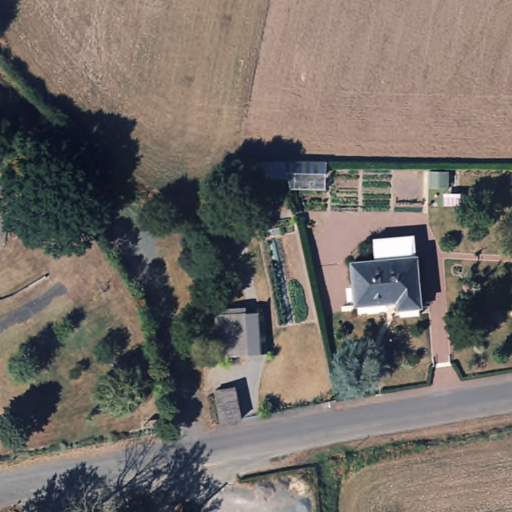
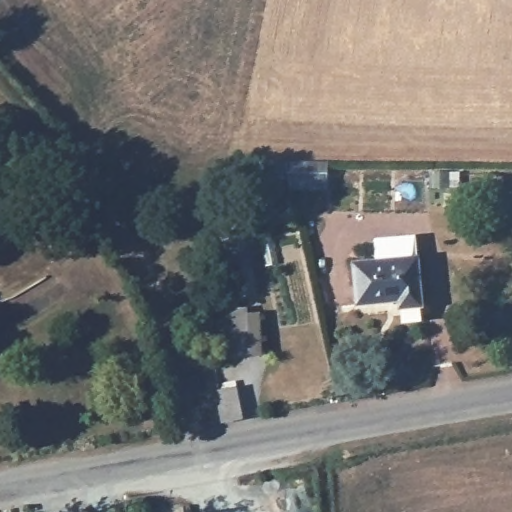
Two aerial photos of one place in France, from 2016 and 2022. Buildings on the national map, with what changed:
unchanged [(314,171),(313,196),(277,196),(270,171),(314,171)]
unchanged [(381,249),(422,244),(425,265),(430,313),(409,316),(408,308),(365,313),(360,272),(384,270),(381,249)]
unchanged [(165,261),(166,274),(153,276),(151,263),(165,261)]
unchanged [(250,322),(252,362),(222,364),(221,324),(250,322)]
unchanged [(227,400),(232,431),(211,435),(206,403),(227,400)]

